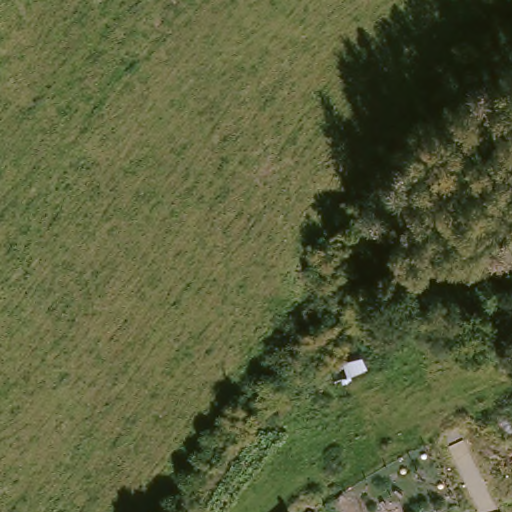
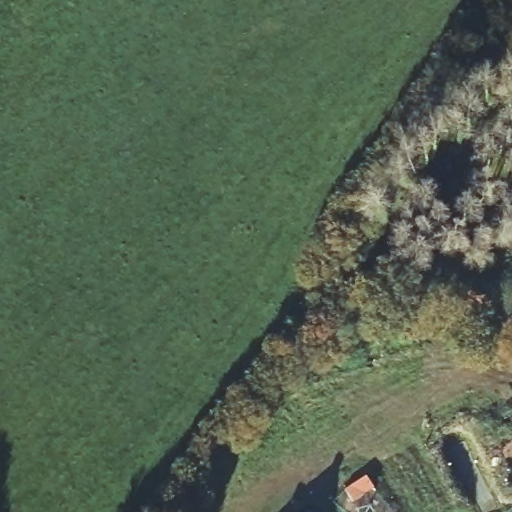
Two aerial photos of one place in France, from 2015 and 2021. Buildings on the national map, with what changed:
unchanged [(336,387),(326,362),(354,346),(366,370),(336,387)]

